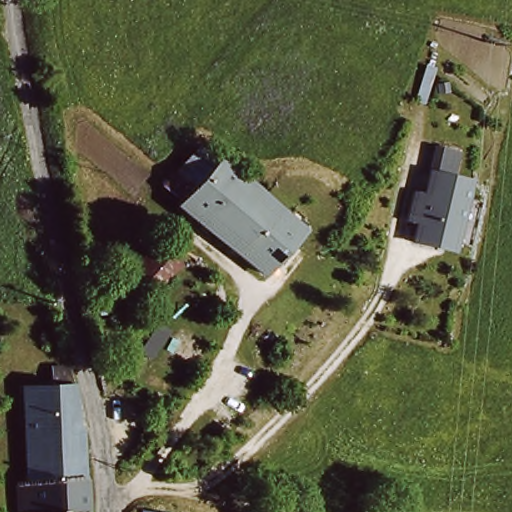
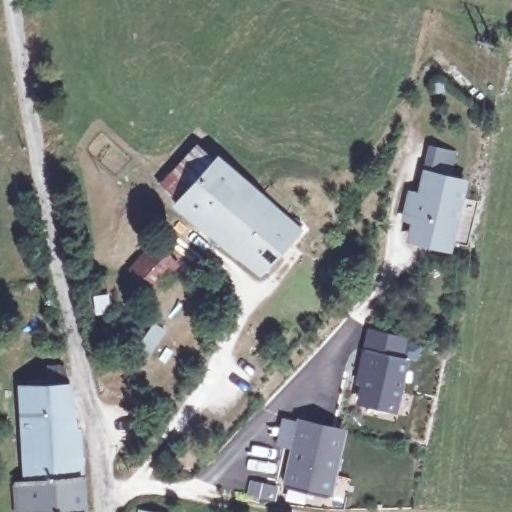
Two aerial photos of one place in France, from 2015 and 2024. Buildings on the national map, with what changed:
unchanged [(178,164),(191,170),(200,156),(288,214),(257,265),(155,202),(178,164)]
unchanged [(468,184),(450,247),(411,237),(429,174),(468,184)]
unchanged [(150,237),(177,260),(152,288),(124,268),(150,237)]
new [(364,371),(368,353),(373,333),(378,334),(406,341),(401,361),(408,362),(395,414),(361,406),(365,389),(360,388),(364,371)]
unchanged [(19,385),(75,381),(78,427),(86,427),(91,512),(25,512),(24,486),(19,385)]
new [(297,419),(345,428),(332,496),(282,486),(297,419)]
new [(252,497),(256,484),(273,488),(270,502),(252,497)]
unchanged [(153,512),(138,512),(138,510),(153,512)]

